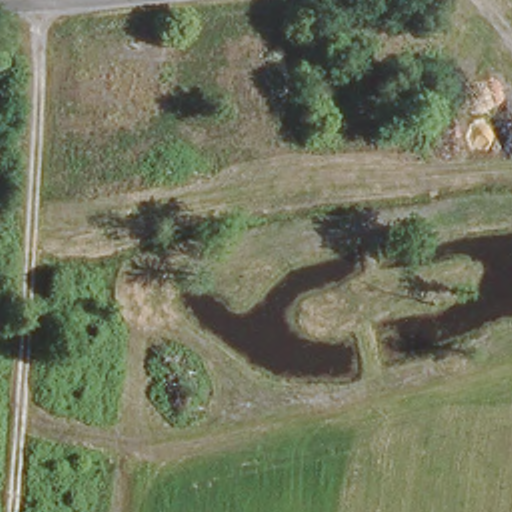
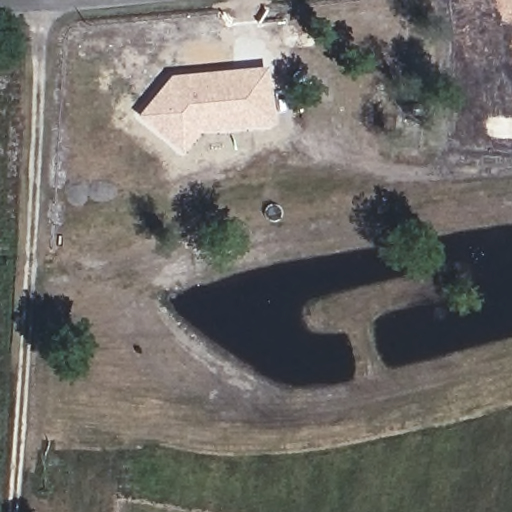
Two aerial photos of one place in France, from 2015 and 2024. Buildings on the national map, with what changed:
new [(169,75),(245,71),(257,66),(261,72),(267,72),(274,124),(200,131),(181,153),(136,116),(169,75)]

